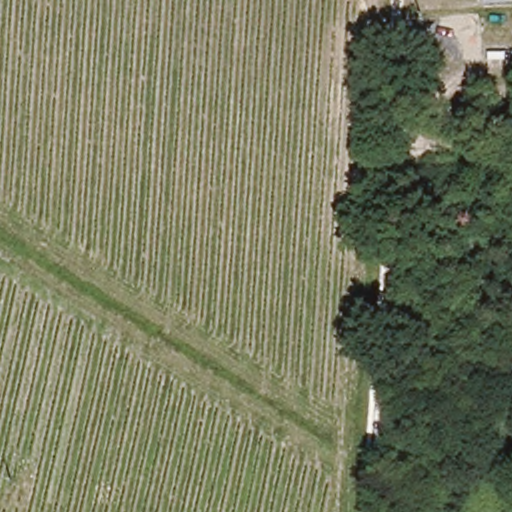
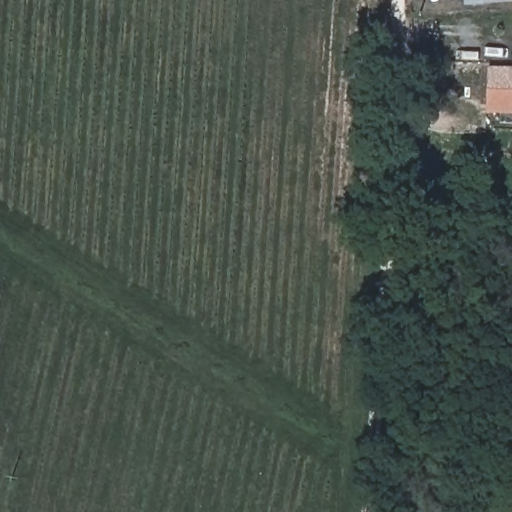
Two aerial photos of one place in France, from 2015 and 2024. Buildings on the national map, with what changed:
new [(465,0),(492,0),(465,5),(465,0)]
demolished [(494,0),(512,0),(512,1),(494,1),(494,0)]
new [(489,66),(512,68),(512,115),(487,114),(489,66)]

